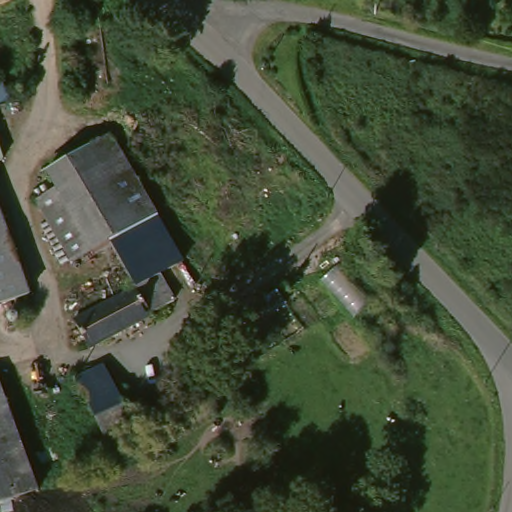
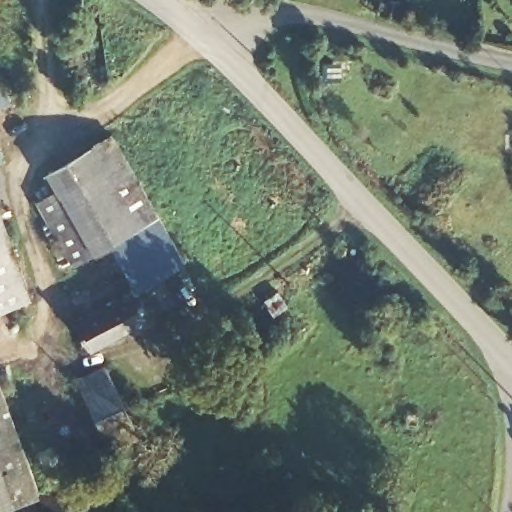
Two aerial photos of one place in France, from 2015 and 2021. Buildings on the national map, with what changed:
unchanged [(108,240),(67,263),(32,199),(56,186),(45,168),(84,147),(107,131),(183,256),(158,268),(132,283),(108,240)]
unchanged [(0,220),(24,288),(0,298),(0,220)]
unchanged [(173,296),(87,346),(73,317),(132,283),(158,268),(173,296)]
unchanged [(114,448),(92,404),(79,409),(70,390),(84,385),(81,377),(108,363),(143,432),(114,448)]
unchanged [(0,392),(43,483),(0,503),(0,392)]

